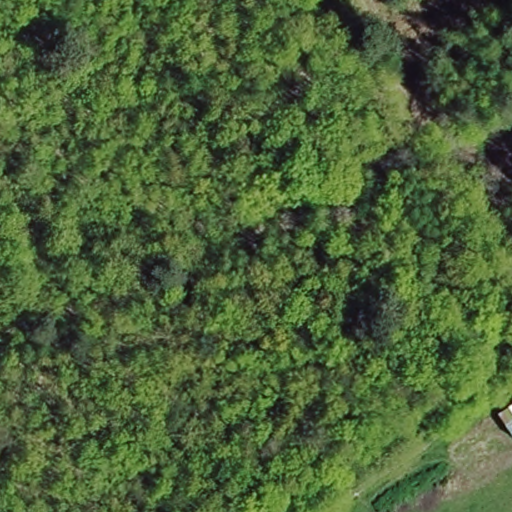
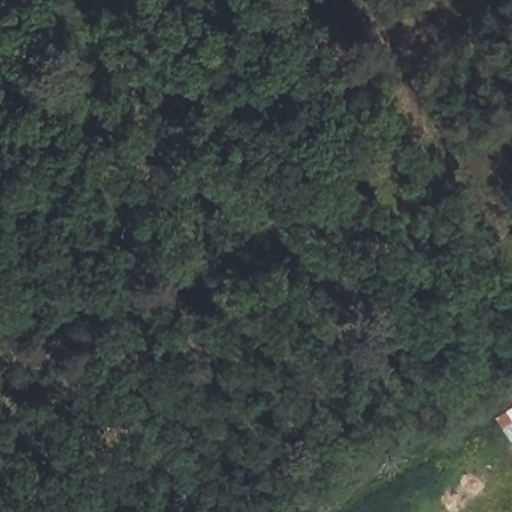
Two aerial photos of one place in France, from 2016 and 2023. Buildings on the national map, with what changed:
unchanged [(512,437),(497,414),(512,404),(512,437)]

